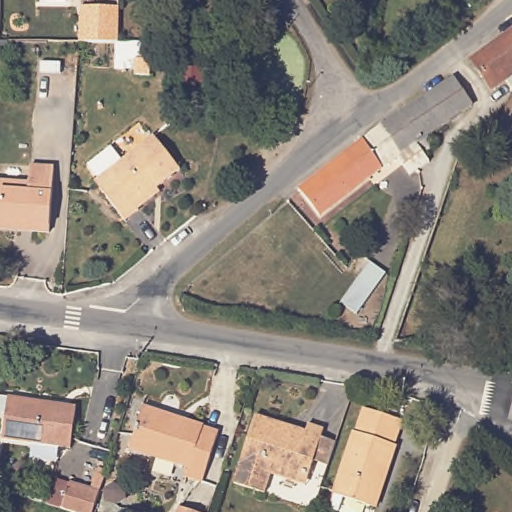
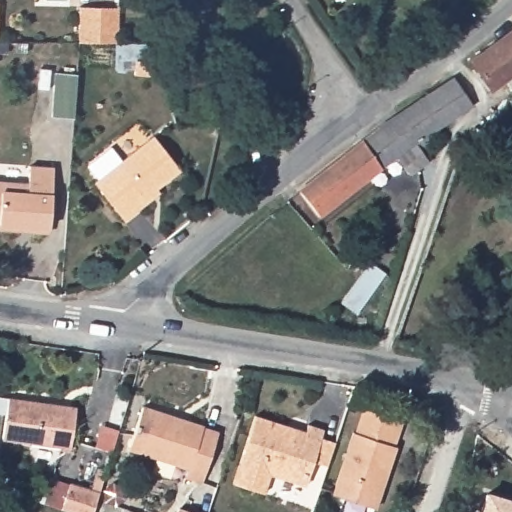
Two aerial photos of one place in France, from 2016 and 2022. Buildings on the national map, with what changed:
unchanged [(118,43),(80,43),(81,6),(119,8),(118,43)]
unchanged [(494,93),(467,56),(512,28),(512,84),(510,83),(494,93)]
unchanged [(165,71),(150,71),(151,55),(166,56),(165,71)]
unchanged [(449,75),(470,104),(440,124),(421,95),(449,75)]
unchanged [(297,186),(335,158),(373,129),(376,126),(393,114),(421,95),(440,124),(429,131),(429,146),(423,152),(430,161),(410,177),(394,158),(320,215),(300,189),(297,186)]
unchanged [(103,186),(93,173),(116,153),(127,166),(158,141),(184,175),(140,211),(144,216),(130,227),(100,189),(103,186)]
unchanged [(0,225),(0,177),(26,180),(28,161),(53,164),(48,230),(28,228),(1,226),(0,225)]
unchanged [(379,281),(346,324),(332,313),(365,270),(379,281)]
unchanged [(3,396),(70,410),(62,452),(0,440),(0,414),(3,396)]
unchanged [(144,406),(205,425),(204,428),(220,433),(205,481),(187,475),(190,466),(131,448),(144,406)]
unchanged [(352,431),(355,432),(362,409),(400,421),(392,446),(394,446),(374,508),(331,494),(352,431)]
unchanged [(299,484),(272,476),(266,495),(236,484),(259,416),(290,426),(308,432),(310,425),(327,431),(324,438),(339,442),(331,467),(315,463),(312,475),(309,487),(299,484)]
unchanged [(69,489),(97,499),(93,512),(61,512),(69,489)]
new [(512,499),(512,512),(481,512),(487,491),(512,499)]
unchanged [(175,510),(182,512),(175,512),(175,510)]

